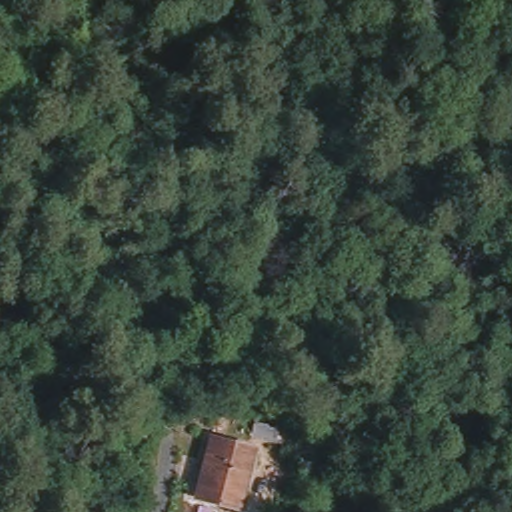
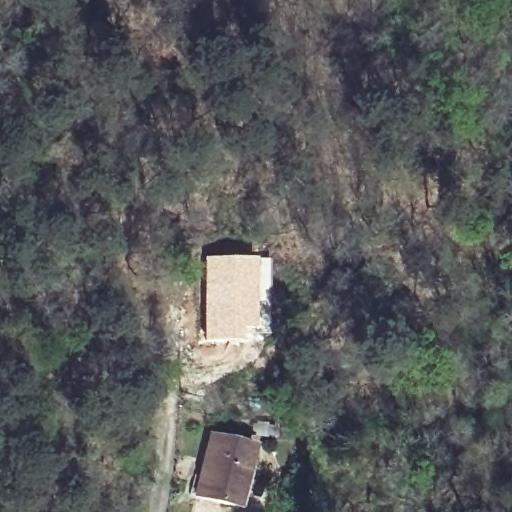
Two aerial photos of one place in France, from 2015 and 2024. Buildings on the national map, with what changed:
new [(258,257),(268,258),(267,333),(258,333),(244,333),(244,338),(243,338),(243,340),(202,341),(203,257),(258,257)]
unchanged [(195,504),(210,441),(254,452),(239,512),(228,512),(195,504)]

